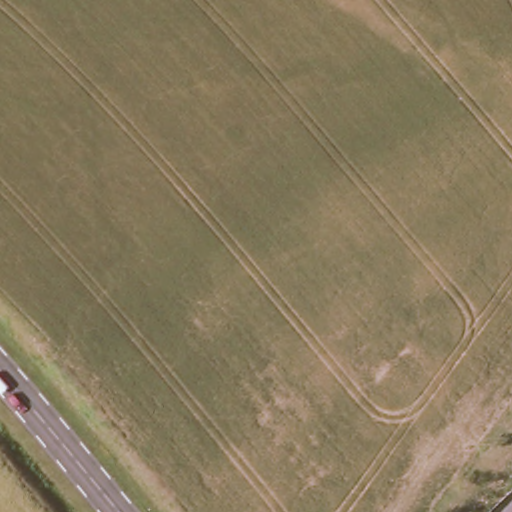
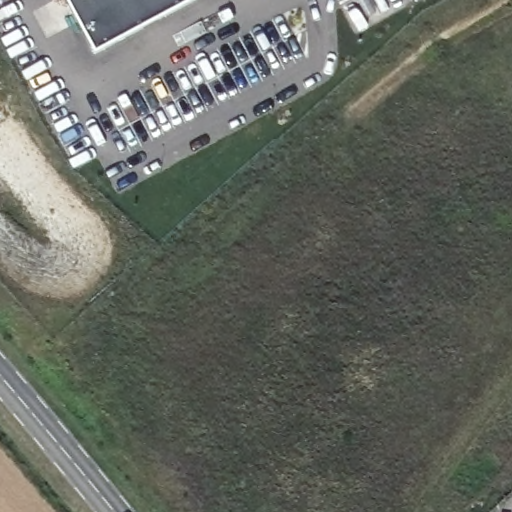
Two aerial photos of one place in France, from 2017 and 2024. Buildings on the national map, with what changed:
new [(101,56),(73,0),(206,0),(101,56)]

